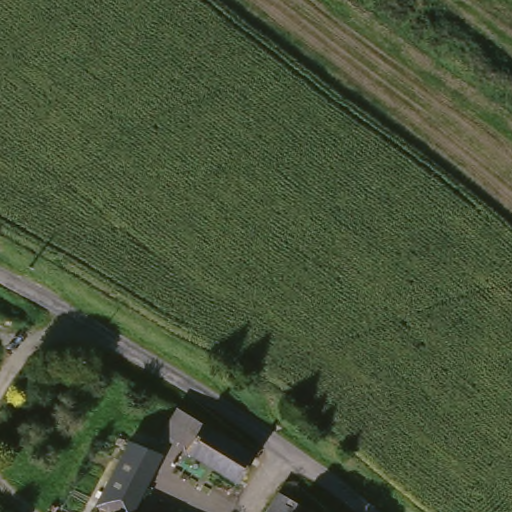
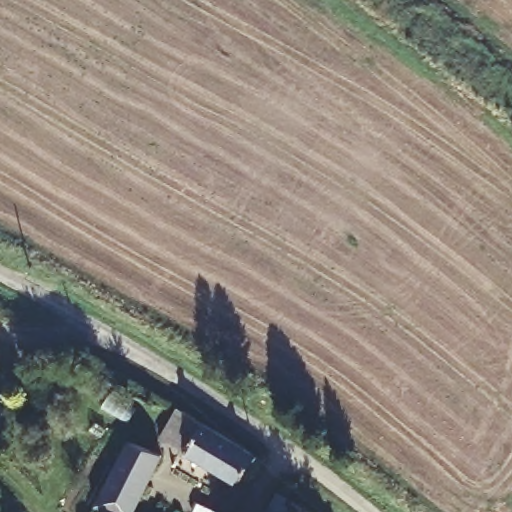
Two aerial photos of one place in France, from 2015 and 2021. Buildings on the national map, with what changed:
unchanged [(187,446),(202,420),(257,451),(242,477),(187,446)]
unchanged [(129,445),(130,443),(137,431),(165,443),(160,457),(131,512),(96,512),(129,445)]
unchanged [(312,512),(271,512),(280,496),(312,512)]

